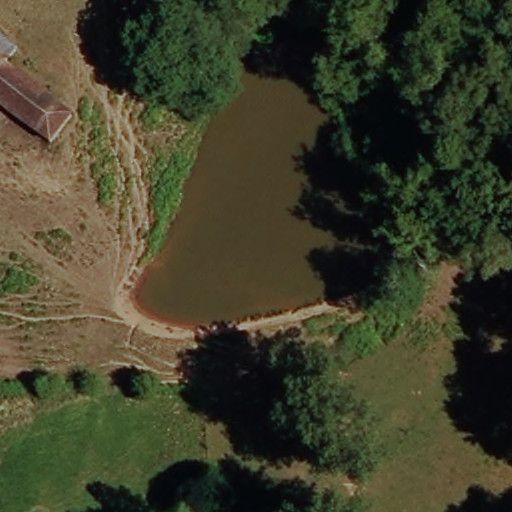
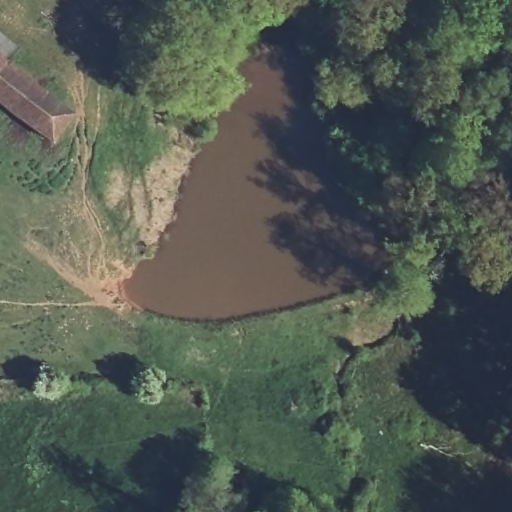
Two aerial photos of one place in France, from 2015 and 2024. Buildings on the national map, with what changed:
unchanged [(9,59),(79,112),(55,142),(0,98),(0,30),(19,44),(9,59)]

